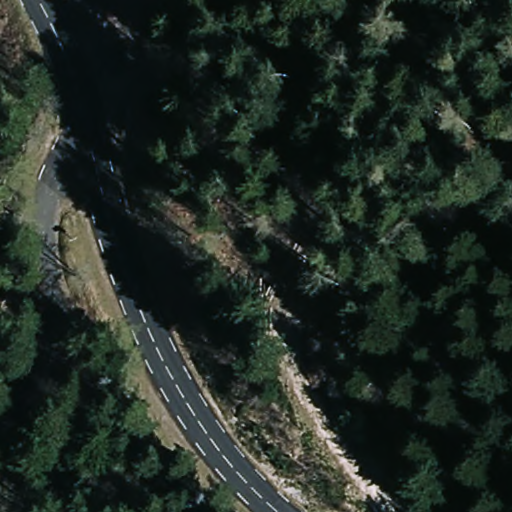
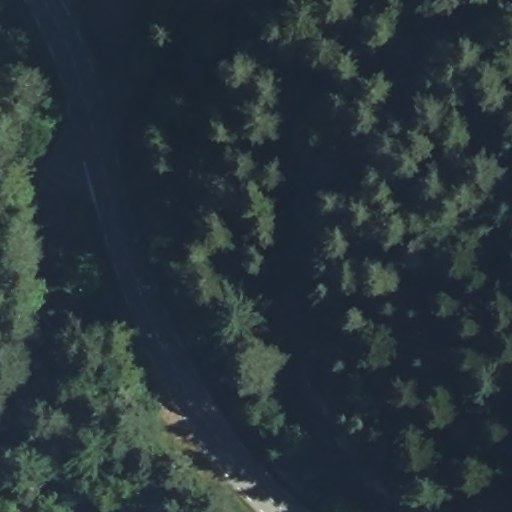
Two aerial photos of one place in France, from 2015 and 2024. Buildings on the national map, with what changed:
unchanged [(7,494),(2,512),(0,512),(0,493),(7,494)]

